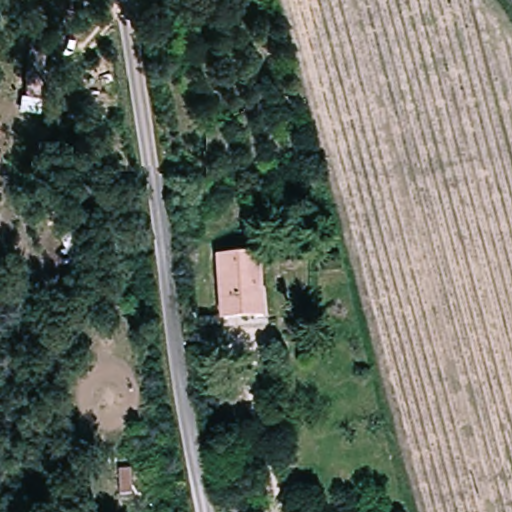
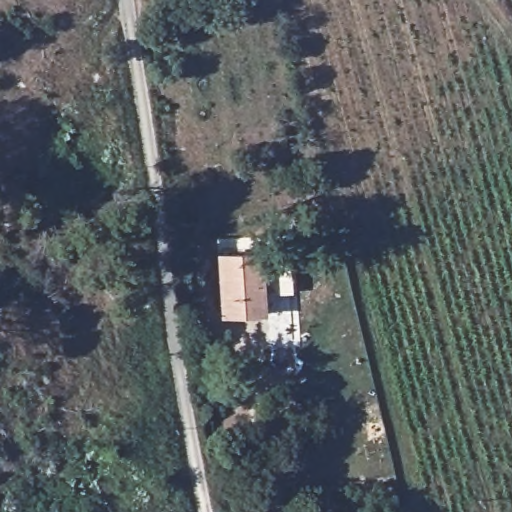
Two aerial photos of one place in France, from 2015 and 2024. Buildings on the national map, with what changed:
unchanged [(266,247),(273,312),(227,320),(221,254),(266,247)]

